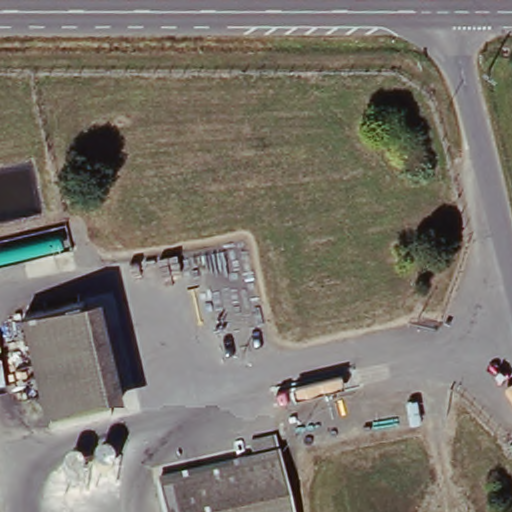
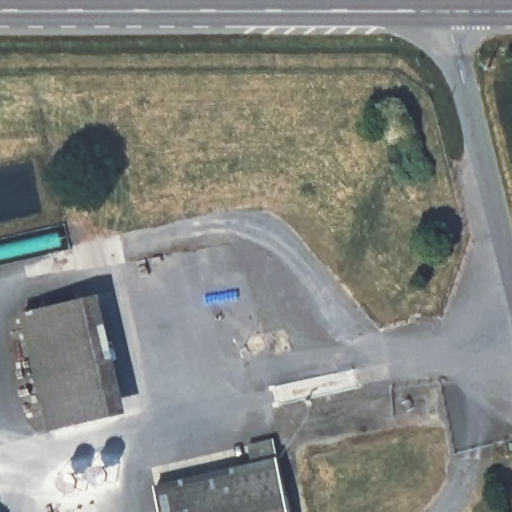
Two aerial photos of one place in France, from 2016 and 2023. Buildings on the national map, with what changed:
unchanged [(94,296),(121,414),(61,428),(33,310),(94,296)]
unchanged [(254,447),(281,442),(296,512),(166,512),(161,487),(259,465),(254,447)]

